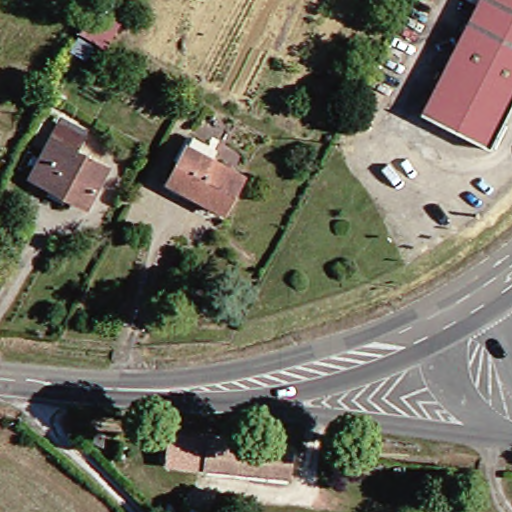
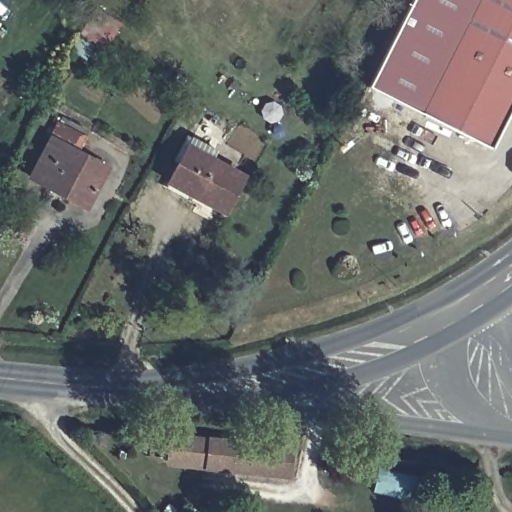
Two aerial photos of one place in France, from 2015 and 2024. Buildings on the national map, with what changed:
new [(426,112),(368,85),(413,0),(481,0),(426,112)]
unchanged [(512,118),(497,147),(426,112),(481,0),(512,0),(512,118)]
unchanged [(82,148),(113,165),(89,207),(33,176),(69,110),(95,125),(82,148)]
unchanged [(174,179),(192,146),(246,174),(227,208),(174,179)]
unchanged [(302,471),(182,461),(185,433),(305,445),(302,471)]

